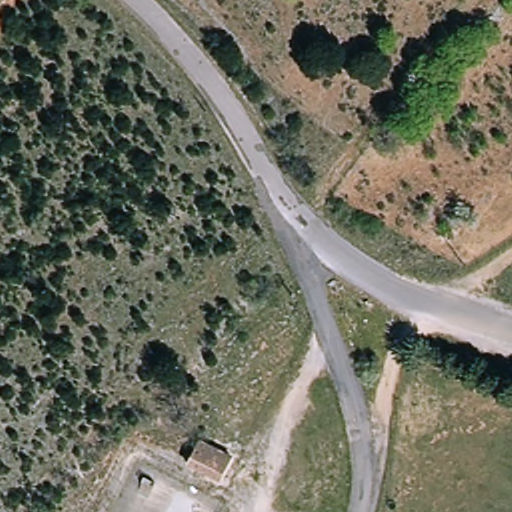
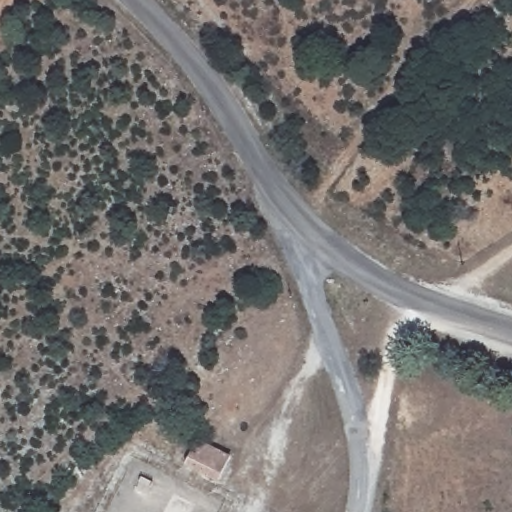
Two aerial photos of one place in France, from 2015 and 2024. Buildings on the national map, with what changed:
unchanged [(210,484),(185,469),(198,444),(225,459),(210,484)]

